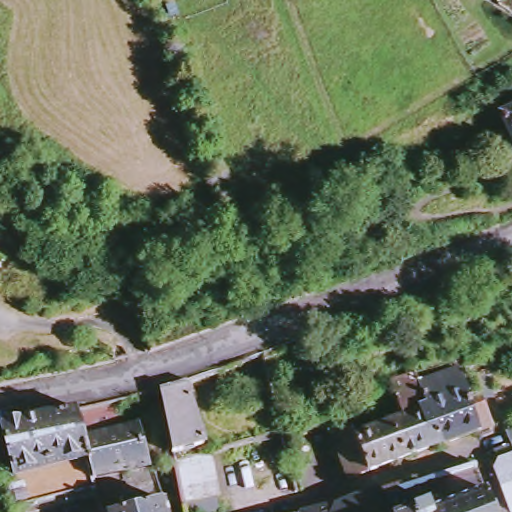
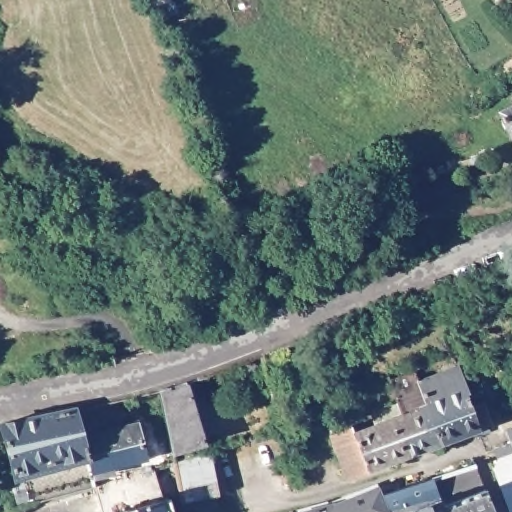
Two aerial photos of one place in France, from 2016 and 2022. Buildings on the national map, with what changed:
unchanged [(495,116),(512,109),(512,151),(510,152),(495,116)]
unchanged [(489,431),(479,435),(404,462),(388,421),(425,407),(420,395),(433,391),(432,385),(457,375),(459,382),(467,401),(467,405),(480,405),(489,431)]
unchanged [(495,398),(485,401),(480,403),(479,400),(473,385),(472,382),(486,376),(488,381),(495,398)]
unchanged [(207,450),(177,460),(161,396),(191,387),(207,450)]
unchanged [(179,470),(211,460),(220,500),(222,512),(189,512),(188,507),(185,495),(172,498),(177,512),(105,512),(100,492),(80,415),(161,396),(177,460),(179,470)]
unchanged [(22,512),(11,512),(0,461),(0,431),(80,415),(100,492),(22,512)]
unchanged [(404,462),(368,475),(353,434),(388,421),(404,462)]
unchanged [(368,475),(347,483),(331,442),(353,434),(368,475)]
unchanged [(512,436),(512,440),(510,436),(512,436)]
unchanged [(500,468),(507,465),(503,455),(510,452),(512,451),(512,498),(502,471),(500,468)]
unchanged [(478,468),(497,512),(394,512),(387,496),(478,468)]
unchanged [(386,495),(387,496),(394,512),(329,512),(340,509),(384,491),(386,495)]

